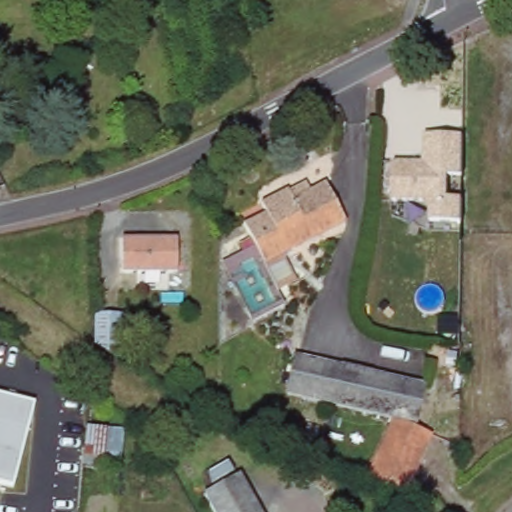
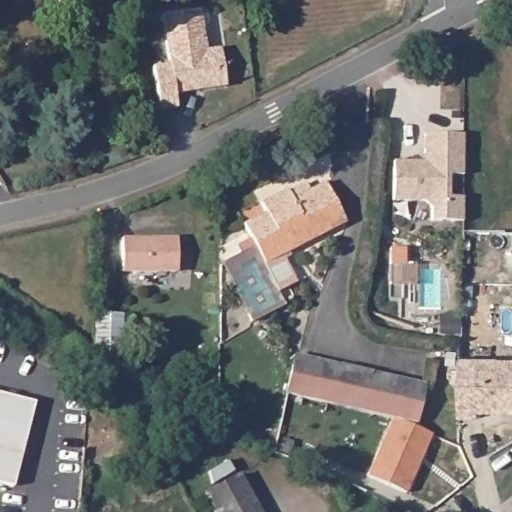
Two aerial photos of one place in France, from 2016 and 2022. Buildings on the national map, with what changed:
new [(208,50),(223,47),(227,87),(175,93),(177,110),(160,111),(154,65),(168,64),(162,15),(202,9),(208,50)]
unchanged [(425,135),(465,135),(465,175),(451,175),(451,195),(465,196),(464,220),(430,220),(430,201),(396,200),(395,160),(426,161),(425,135)]
unchanged [(259,203),(286,190),(302,182),(306,190),(322,182),(342,222),(261,263),(281,305),(247,322),(219,263),(252,246),(241,224),(263,213),(259,203)]
unchanged [(177,240),(177,271),(122,270),(122,239),(177,240)]
unchanged [(121,315),(121,358),(95,345),(96,313),(121,315)]
unchanged [(295,355),(423,385),(414,421),(287,391),(295,355)]
new [(479,418),(460,418),(461,360),(512,360),(512,413),(480,413),(479,418)]
unchanged [(34,403),(14,486),(0,483),(0,394),(34,403)]
unchanged [(88,400),(97,401),(96,427),(107,428),(106,442),(122,444),(120,466),(83,463),(84,449),(85,440),(88,400)]
unchanged [(432,435),(410,486),(371,471),(391,420),(432,435)]
demolished [(84,449),(83,463),(79,508),(53,506),(57,446),(84,449)]
unchanged [(165,465),(172,480),(157,488),(150,473),(165,465)]
unchanged [(241,475),(261,512),(217,512),(207,493),(241,475)]

